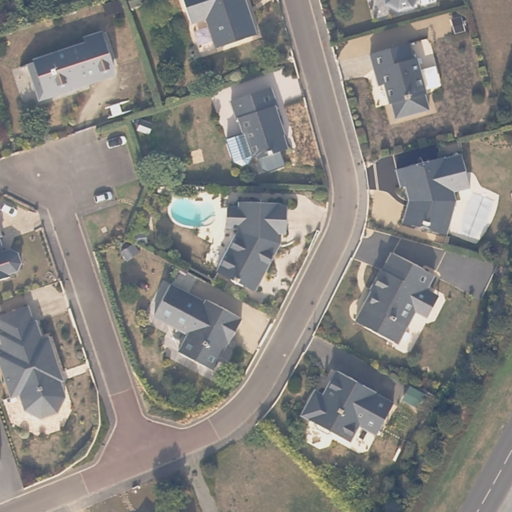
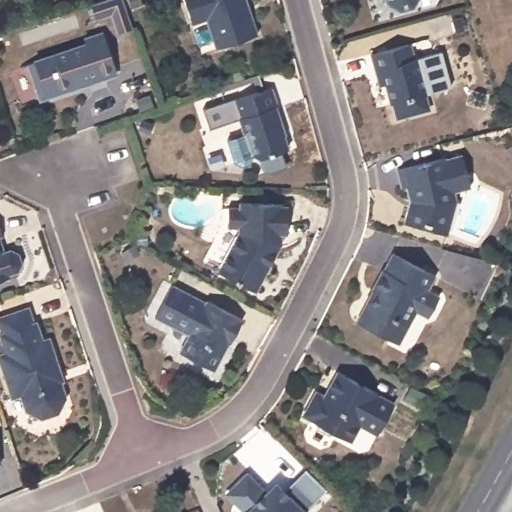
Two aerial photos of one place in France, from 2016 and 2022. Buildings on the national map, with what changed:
unchanged [(243,6),(245,14),(247,13),(253,34),(213,48),(204,19),(189,23),(182,0),(243,0),(244,6),(243,6)]
unchanged [(402,10),(389,3),(389,0),(420,0),(416,7),(402,10)]
unchanged [(90,45),(87,39),(105,33),(117,68),(90,77),(93,83),(43,100),(31,65),(90,45)]
unchanged [(407,43),(411,58),(414,57),(424,93),(422,94),(426,109),(394,117),(390,102),(388,103),(379,68),(373,70),(368,53),(407,43)]
unchanged [(255,155),(250,164),(245,166),(236,162),(228,140),(247,133),(241,118),(240,119),(233,100),(272,86),(279,105),(277,106),(283,122),(281,123),(290,148),(262,158),(256,155),(255,155)]
unchanged [(404,184),(400,186),(395,168),(444,156),(445,157),(461,153),(466,171),(470,186),(458,189),(453,190),(455,199),(447,232),(402,220),(408,198),(404,184)]
unchanged [(284,204),(284,206),(289,206),(289,233),(277,233),(277,245),(281,246),(281,247),(256,291),(219,272),(241,233),(242,203),(284,204)]
unchanged [(2,234),(0,235),(0,229),(2,234)]
unchanged [(3,250),(10,247),(18,251),(22,263),(18,270),(10,273),(11,276),(0,280),(0,241),(3,250)]
unchanged [(390,335),(356,317),(367,296),(370,298),(375,288),(371,286),(381,266),(383,266),(392,250),(434,272),(427,286),(430,288),(433,295),(427,307),(420,309),(416,306),(409,320),(398,339),(390,335)]
unchanged [(207,303),(209,301),(242,318),(241,319),(243,320),(235,335),(231,333),(228,340),(230,341),(215,370),(182,353),(191,335),(157,317),(174,286),(207,303)]
unchanged [(41,418),(26,410),(21,394),(12,397),(0,359),(0,354),(6,351),(0,333),(3,332),(0,323),(0,316),(29,306),(34,322),(36,321),(42,339),(49,337),(60,372),(54,374),(57,382),(60,381),(65,397),(58,413),(41,418)]
unchanged [(359,425),(350,441),(334,432),(328,434),(317,428),(315,422),(311,419),(311,418),(304,414),(316,392),(323,396),(337,371),(357,382),(355,384),(362,388),(363,385),(377,393),(376,394),(394,404),(379,430),(377,434),(359,425)]
new [(304,510),(307,512),(241,512),(223,493),(246,471),(263,489),(274,478),(283,487),(304,467),(325,490),(304,510)]

